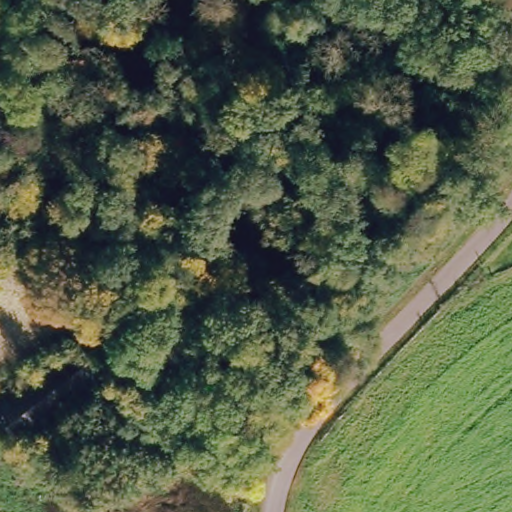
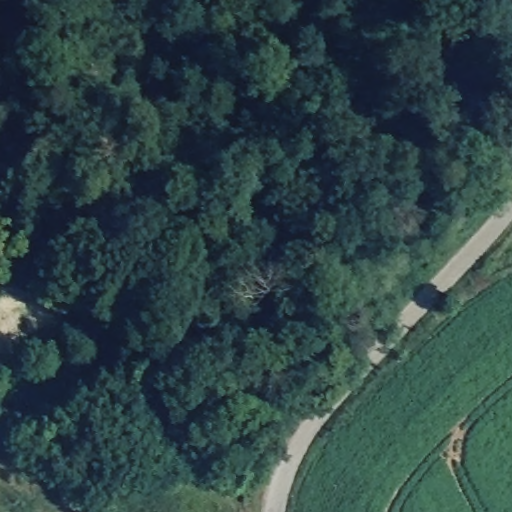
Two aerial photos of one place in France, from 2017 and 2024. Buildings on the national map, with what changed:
unchanged [(0,446),(0,390),(57,359),(67,371),(90,356),(102,375),(83,391),(91,406),(6,457),(0,446)]

